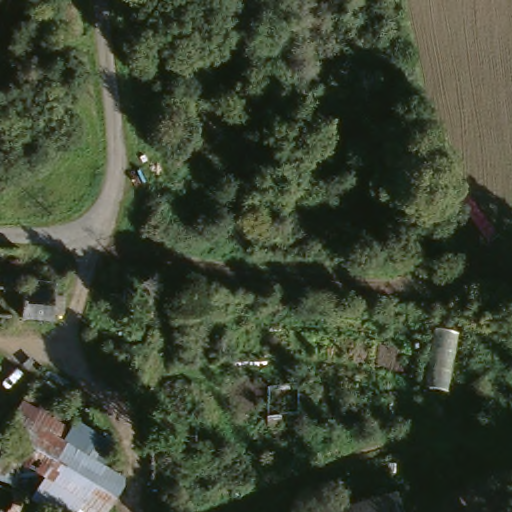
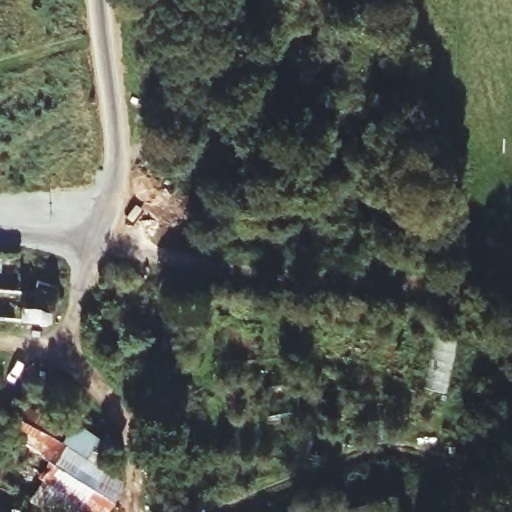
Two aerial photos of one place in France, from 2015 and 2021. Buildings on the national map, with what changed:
unchanged [(6,425),(27,401),(111,449),(101,470),(121,481),(104,512),(32,512),(21,505),(0,493),(0,425),(6,425)]
unchanged [(19,512),(0,512),(0,493),(21,505),(19,512)]
unchanged [(391,495),(396,512),(331,512),(391,495)]

